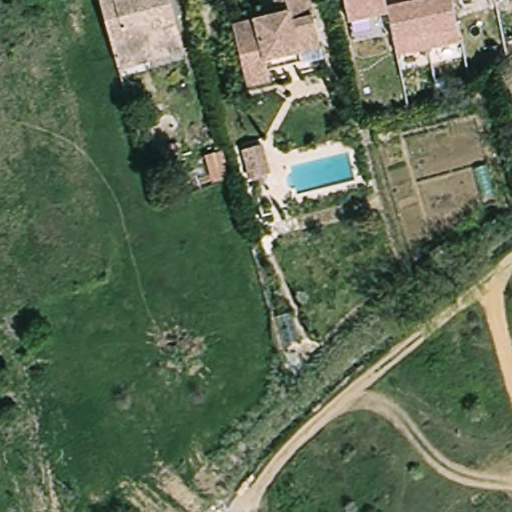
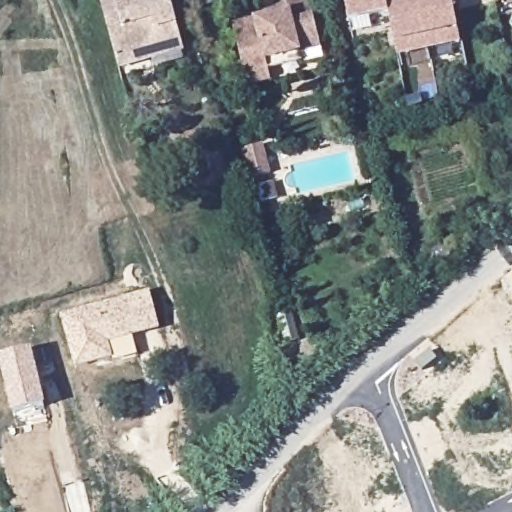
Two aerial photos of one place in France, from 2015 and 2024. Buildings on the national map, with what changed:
unchanged [(184,50),(118,68),(99,0),(170,0),(184,50)]
unchanged [(252,86),(250,77),(238,26),(270,18),(268,13),(283,9),(281,0),(314,0),(323,39),(326,48),(305,53),(307,63),(273,71),(275,81),(252,86)]
unchanged [(468,20),(470,34),(438,40),(406,46),(398,4),(359,12),(357,0),(463,0),(468,20)]
unchanged [(244,145),(263,140),(271,171),(252,176),(244,145)]
new [(161,329),(133,336),(137,354),(114,361),(113,358),(77,367),(61,315),(149,290),(161,329)]
new [(14,413),(0,364),(0,356),(32,348),(45,406),(14,413)]

